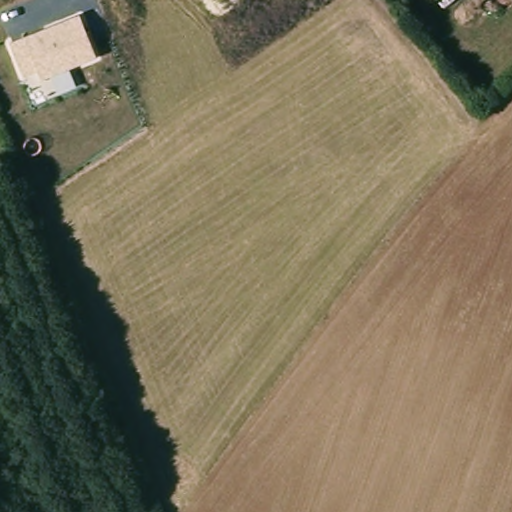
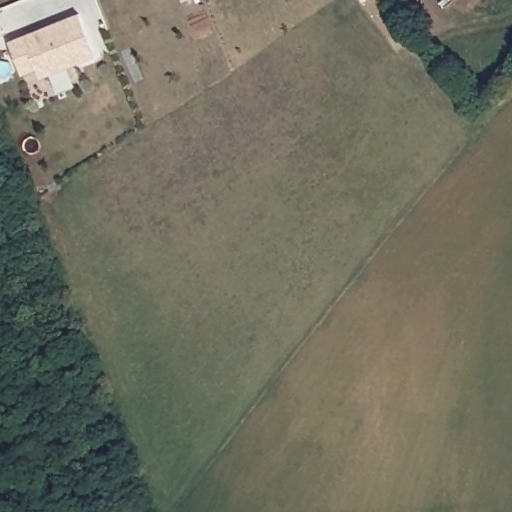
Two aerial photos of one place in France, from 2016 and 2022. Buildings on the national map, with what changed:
unchanged [(69,69),(76,86),(59,93),(50,75),(41,79),(37,71),(22,78),(8,43),(80,16),(96,57),(69,69)]

